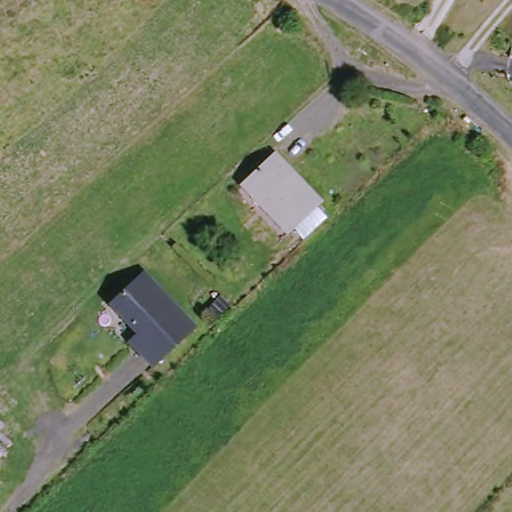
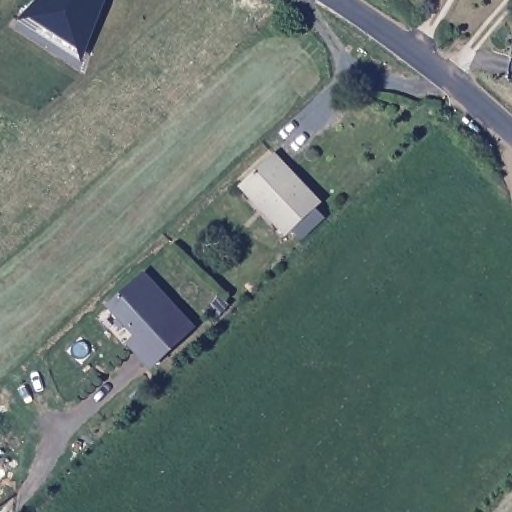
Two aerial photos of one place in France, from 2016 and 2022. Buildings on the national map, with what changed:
new [(36,0),(107,0),(84,61),(18,20),(36,0)]
unchanged [(297,226),(290,233),(271,212),(275,208),(246,179),(278,150),(325,198),(318,204),(329,216),(307,237),(297,226)]
unchanged [(196,329),(155,367),(131,343),(138,335),(111,304),(144,274),(196,329)]

